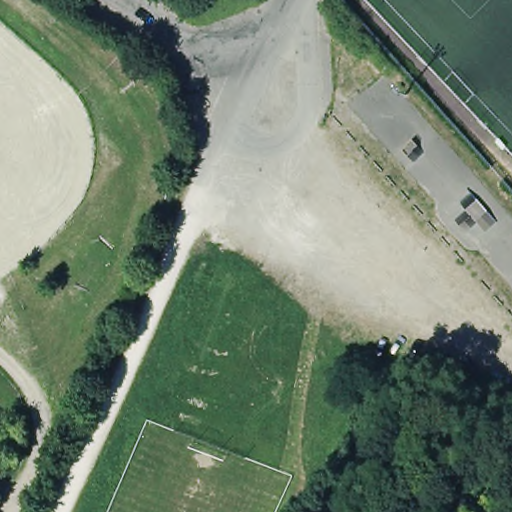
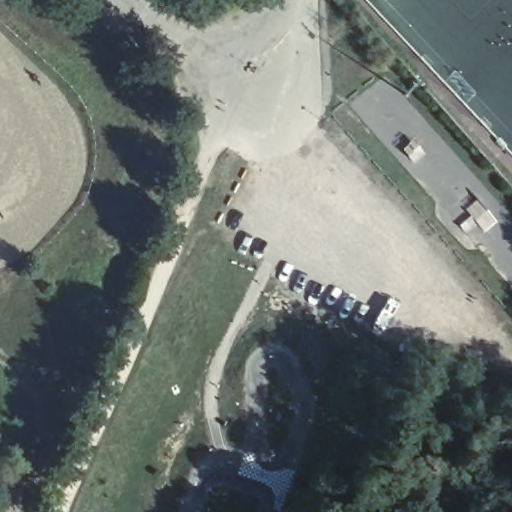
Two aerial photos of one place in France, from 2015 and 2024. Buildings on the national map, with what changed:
unchanged [(0,405),(0,403),(1,404),(0,405)]

